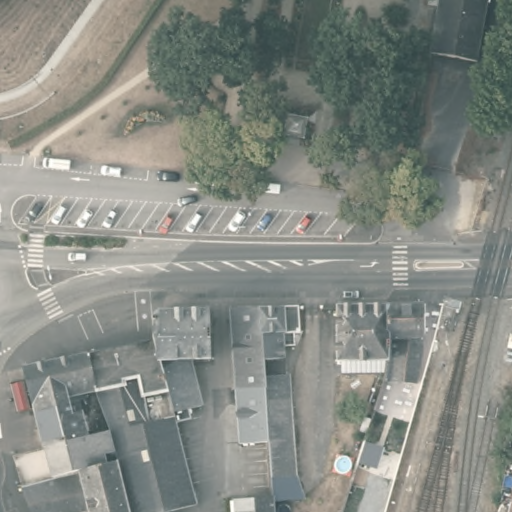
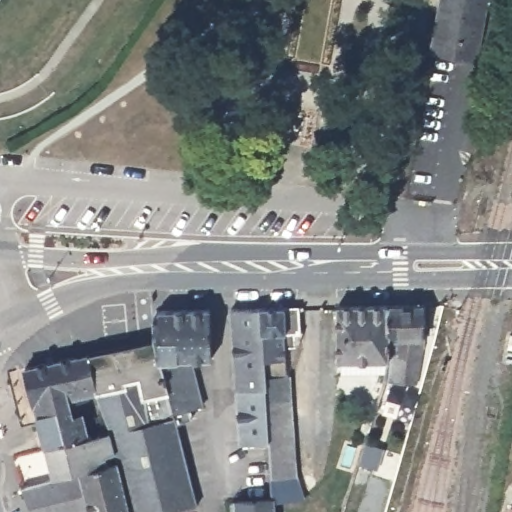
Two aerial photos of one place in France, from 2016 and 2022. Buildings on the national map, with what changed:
unchanged [(455,81),(428,76),(442,0),(469,0),(455,81)]
unchanged [(433,365),(429,381),(398,383),(405,361),(404,304),(441,303),(441,365),(433,365)]
unchanged [(385,431),(377,429),(381,415),(378,414),(389,382),(393,358),(355,360),(354,305),(404,304),(405,361),(398,383),(385,431)]
unchanged [(301,305),(303,331),(288,332),(291,375),(267,377),(261,306),(301,305)]
unchanged [(261,306),(267,377),(267,386),(269,398),(246,400),(245,388),(239,388),(234,307),(261,306)]
unchanged [(155,316),(162,310),(212,308),(214,384),(205,385),(198,357),(193,358),(205,405),(182,411),(184,420),(178,422),(155,339),(155,316)]
unchanged [(106,430),(95,391),(89,352),(112,347),(136,343),(155,339),(178,422),(196,490),(199,503),(167,512),(128,512),(114,461),(106,430)]
unchanged [(26,366),(89,352),(95,391),(65,396),(70,416),(79,415),(84,435),(47,445),(26,366)]
unchanged [(291,375),(293,375),(299,474),(292,474),(294,494),(276,495),(276,484),(269,398),(267,386),(267,377),(291,375)]
unchanged [(47,445),(84,435),(106,430),(114,461),(54,476),(47,445)]
unchanged [(383,437),(390,440),(385,453),(378,451),(383,437)]
unchanged [(54,476),(114,461),(128,512),(35,512),(24,485),(54,476)]
unchanged [(246,487),(276,484),(276,495),(277,512),(238,512),(237,499),(246,498),(246,487)]
unchanged [(512,512),(511,512),(512,510),(512,512)]

